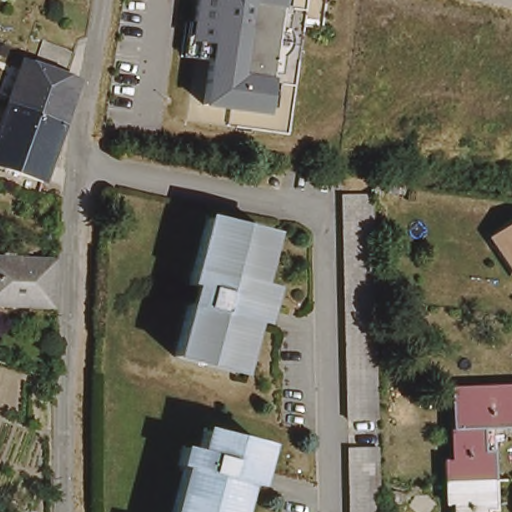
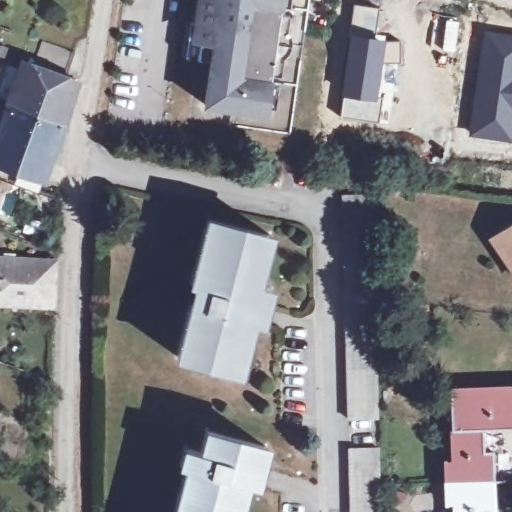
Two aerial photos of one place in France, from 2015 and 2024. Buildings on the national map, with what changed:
unchanged [(244,112),(184,103),(191,59),(177,56),(182,22),(175,21),(178,0),(289,0),(273,116),(244,112)]
new [(354,3),(379,8),(374,31),(349,26),(354,3)]
new [(512,35),(512,142),(468,135),(483,29),(512,35)]
new [(339,116),(341,95),(349,31),(400,40),(399,62),(383,61),(379,100),(376,121),(339,116)]
unchanged [(9,105),(25,61),(35,64),(41,47),(43,39),(76,51),(74,58),(68,75),(79,79),(64,124),(9,105)]
unchanged [(44,183),(0,168),(0,132),(9,105),(64,124),(49,168),(44,183)]
unchanged [(411,183),(410,199),(377,196),(376,177),(411,183)]
unchanged [(349,420),(341,198),(371,197),(379,420),(349,420)]
unchanged [(175,357),(189,305),(198,308),(203,289),(192,285),(211,218),(275,236),(261,286),(276,290),(266,326),(251,323),(238,374),(175,357)]
unchanged [(483,240),(512,221),(512,282),(511,282),(483,240)]
unchanged [(54,300),(14,298),(14,303),(0,303),(0,260),(56,263),(54,300)]
unchanged [(459,459),(456,387),(512,386),(512,428),(487,429),(487,451),(497,451),(499,481),(452,482),(451,459),(459,459)]
unchanged [(184,466),(178,464),(183,445),(200,450),(206,429),(264,445),(253,484),(241,481),(234,512),(171,512),(184,466)]
unchanged [(359,451),(388,451),(389,512),(360,512),(359,451)]
unchanged [(500,512),(491,512),(461,512),(461,503),(453,503),(452,482),(499,481),(500,512)]

